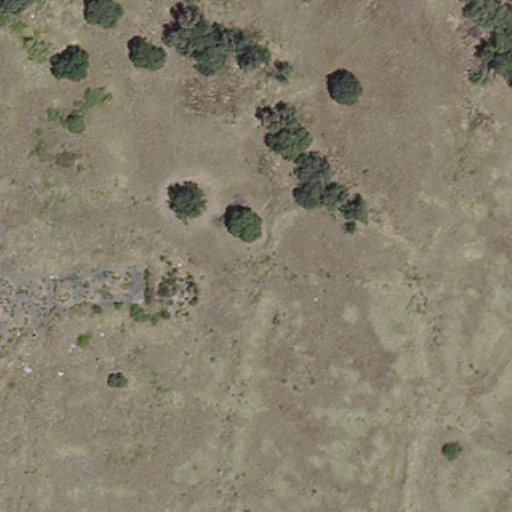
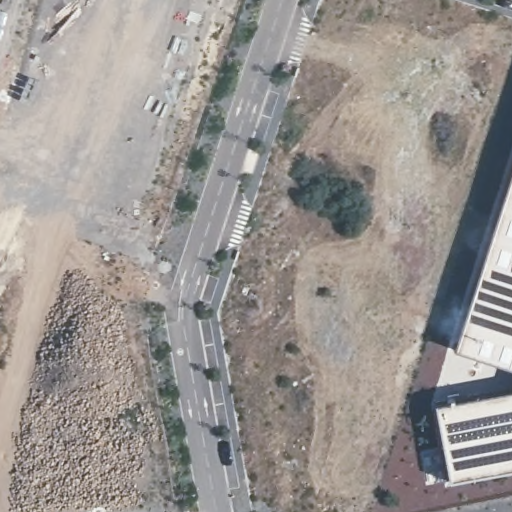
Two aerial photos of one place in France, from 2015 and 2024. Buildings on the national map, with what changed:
new [(452,348),(512,167),(512,369),(452,348)]
new [(448,481),(433,404),(512,390),(512,469),(448,481)]

